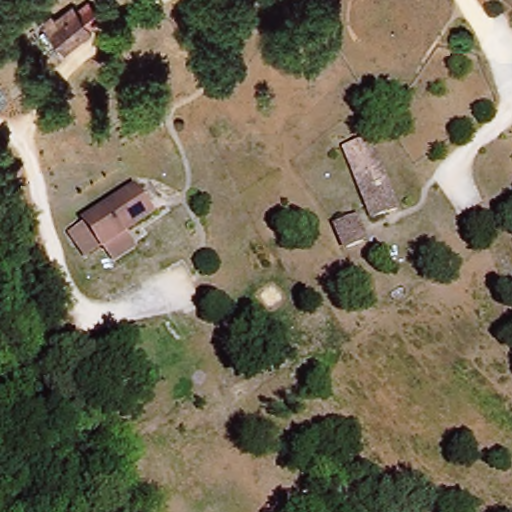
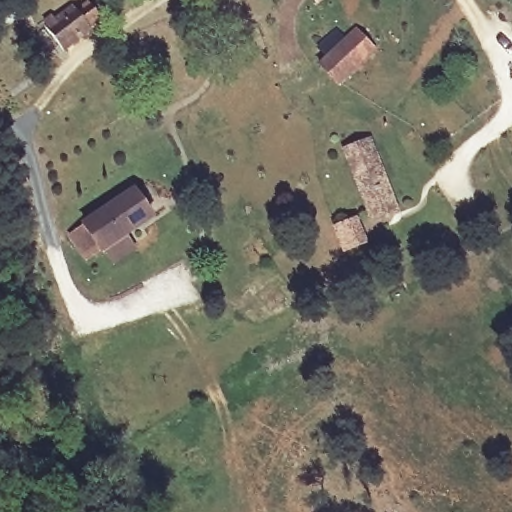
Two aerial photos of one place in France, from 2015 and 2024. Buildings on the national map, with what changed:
unchanged [(45,26),(72,9),(75,12),(86,3),(99,19),(87,28),(90,31),(64,53),(60,50),(45,26)]
new [(345,38),(356,26),(377,49),(337,88),(318,67),(323,53),(317,46),(332,32),(338,38),(345,38)]
unchanged [(182,79),(176,66),(162,74),(150,48),(182,33),(195,58),(200,71),(182,79)]
unchanged [(262,66),(247,71),(239,45),(272,34),(281,60),(285,73),(266,79),(262,66)]
unchanged [(347,154),(372,144),(386,181),(400,213),(376,224),(363,192),(347,154)]
unchanged [(82,226),(132,193),(150,222),(100,254),(97,252),(83,262),(67,238),(83,229),(82,226)]
unchanged [(346,255),(337,232),(357,224),(365,247),(346,255)]

